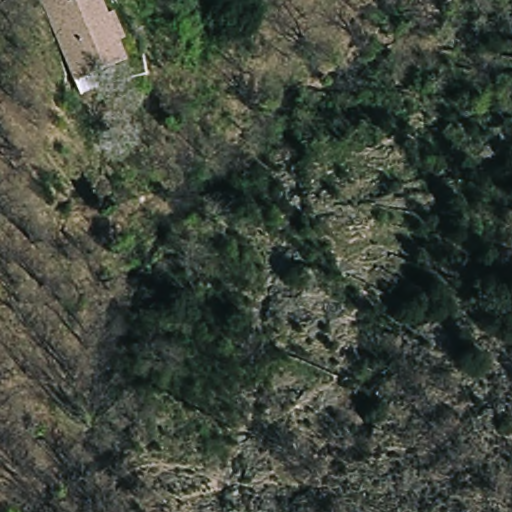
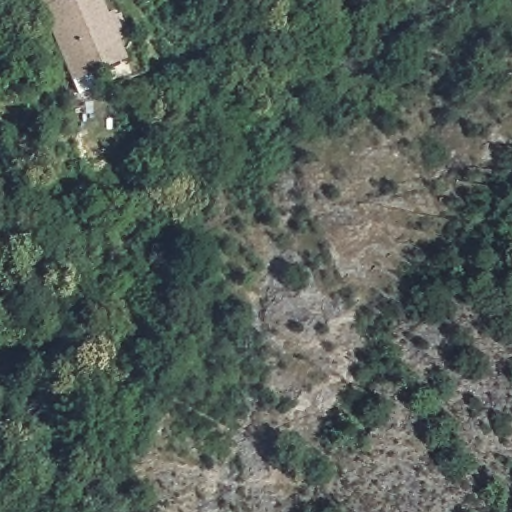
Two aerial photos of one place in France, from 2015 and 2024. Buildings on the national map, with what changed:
unchanged [(112,11),(124,39),(118,41),(126,60),(95,72),(101,87),(80,96),(73,81),(45,11),(73,0),(101,0),(106,14),(112,11)]

